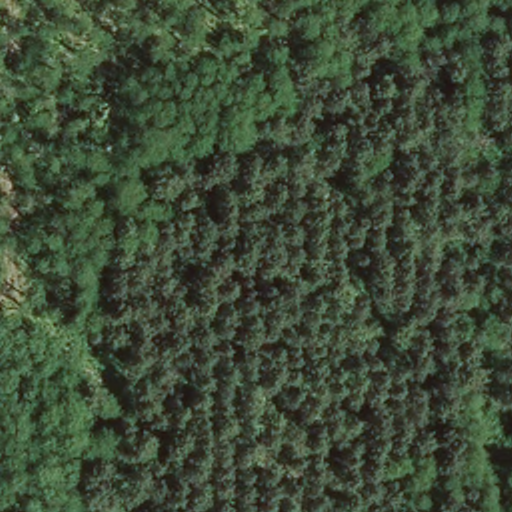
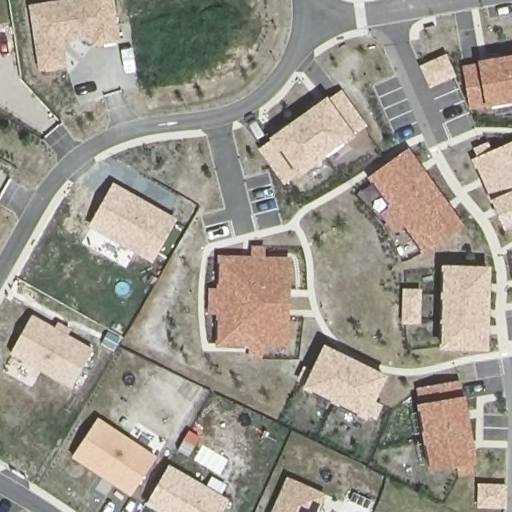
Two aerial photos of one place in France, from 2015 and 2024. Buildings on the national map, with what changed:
new [(119,41),(92,46),(91,38),(64,42),(67,67),(39,71),(29,4),(59,0),(114,0),(119,41)]
new [(447,54),(457,77),(433,88),(423,64),(447,54)]
new [(462,65),(512,57),(512,103),(470,111),(462,65)]
new [(329,99),(342,90),(368,127),(284,186),(258,149),(327,97),(329,99)]
new [(503,231),(472,159),(512,141),(512,227),(503,231)]
new [(403,227),(393,233),(380,216),(388,206),(368,176),(409,148),(465,227),(424,256),(403,227)]
new [(177,221),(154,263),(88,228),(113,183),(177,221)]
new [(290,348),(264,347),(263,359),(248,358),(248,348),(217,347),(218,315),(208,314),(208,287),(218,287),(218,255),(250,256),(251,245),(265,246),(265,256),(291,256),(290,348)]
new [(487,351),(439,350),(442,264),(490,265),(489,274),(487,351)]
new [(421,324),(401,324),(402,291),(422,291),(421,324)]
new [(55,328),(59,322),(72,329),(68,335),(93,349),(71,389),(10,353),(32,314),(55,328)]
new [(366,421),(295,385),(304,367),(311,370),(324,345),(388,376),(366,421)]
new [(477,465),(431,473),(417,388),(462,380),(477,465)]
new [(157,456),(131,497),(71,457),(98,418),(157,456)]
new [(223,512),(157,512),(146,505),(169,466),(229,501),(223,512)]
new [(327,494),(318,512),(272,512),(287,476),(327,494)]
new [(506,509),(480,509),(481,484),(507,484),(506,509)]

